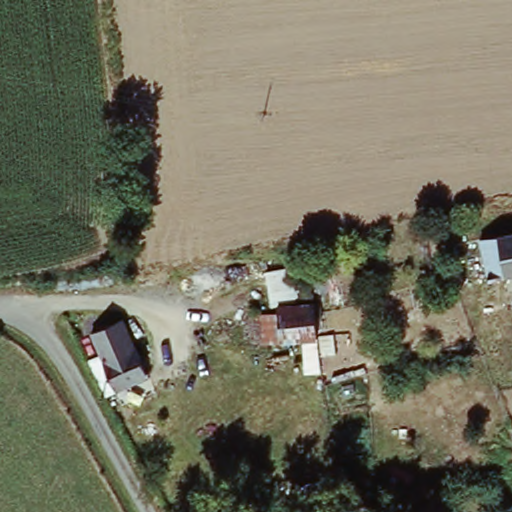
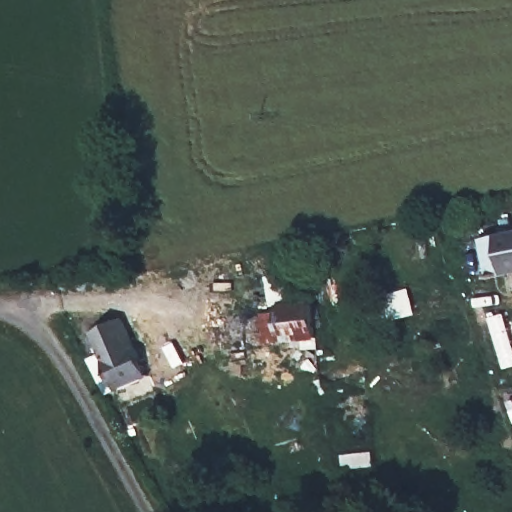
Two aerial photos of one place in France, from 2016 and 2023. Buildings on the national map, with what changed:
unchanged [(512,245),(512,284),(493,287),(486,250),(512,245)]
unchanged [(298,274),(301,306),(267,310),(260,279),(298,274)]
unchanged [(313,309),(313,343),(332,342),(337,363),(317,360),(319,380),(301,379),(298,351),(278,351),(273,313),(313,309)]
unchanged [(125,331),(151,386),(121,397),(98,342),(125,331)]

